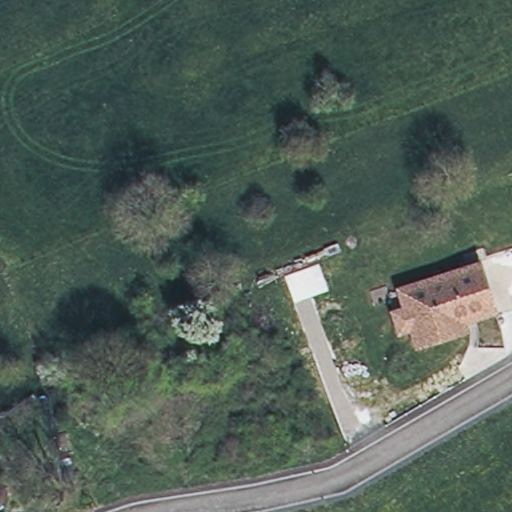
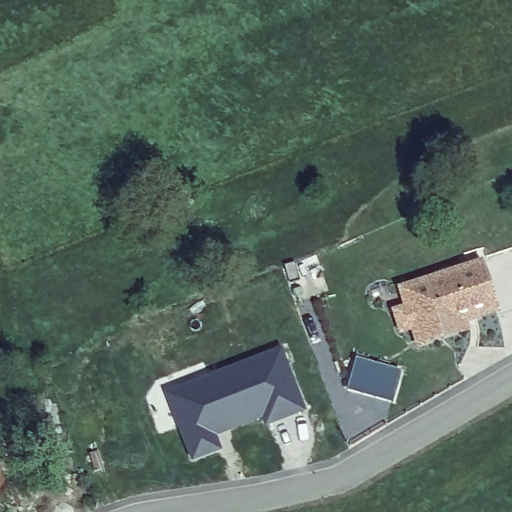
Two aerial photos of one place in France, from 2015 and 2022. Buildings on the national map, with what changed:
unchanged [(417,342),(411,323),(398,327),(394,314),(392,308),(401,305),(403,305),(400,295),(408,292),(405,283),(479,258),(483,270),(495,306),(462,317),(465,327),(417,342)]
new [(307,412),(264,428),(260,419),(217,437),(222,451),(192,462),(163,393),(282,347),(307,412)]
unchanged [(0,496),(0,459),(13,491),(0,496)]

